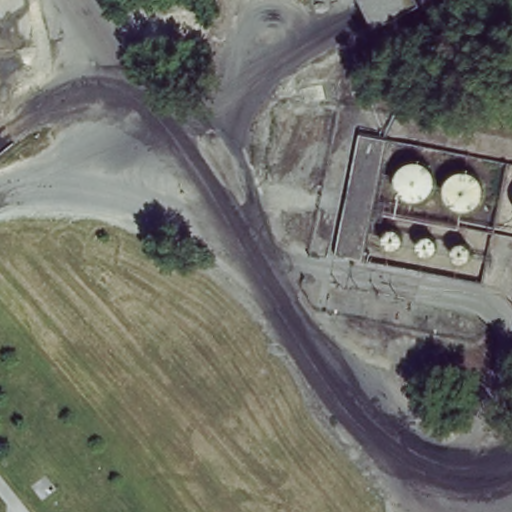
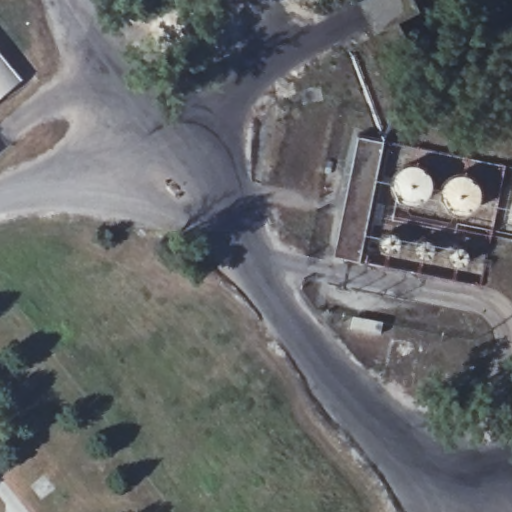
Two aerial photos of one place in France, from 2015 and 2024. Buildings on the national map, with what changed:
unchanged [(374,29),(358,0),(420,0),(422,5),(374,29)]
new [(0,98),(0,53),(22,80),(0,98)]
unchanged [(330,254),(354,133),(381,138),(356,258),(330,254)]
unchanged [(395,248),(388,249),(382,247),(378,242),(378,236),(380,231),(385,227),(390,227),(395,230),(398,235),(398,244),(395,248)]
unchanged [(423,255),(418,254),(415,251),(412,247),(413,241),(416,236),(421,234),(426,235),(431,237),(433,242),(432,249),(426,255),(423,255)]
unchanged [(451,262),(447,260),(445,256),(445,250),(448,246),(451,243),(456,242),(460,244),(463,247),(465,250),(465,255),(463,258),(460,262),(455,263),(451,262)]

